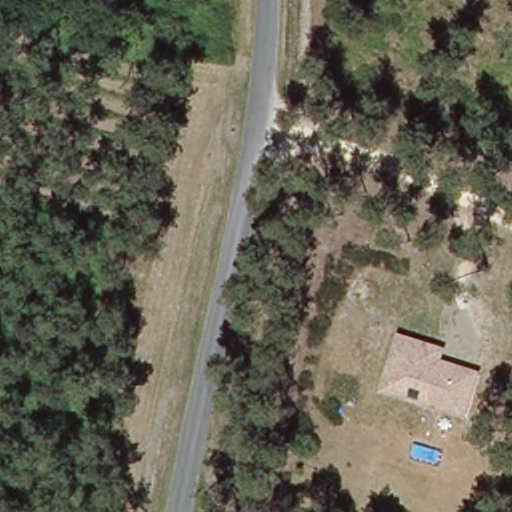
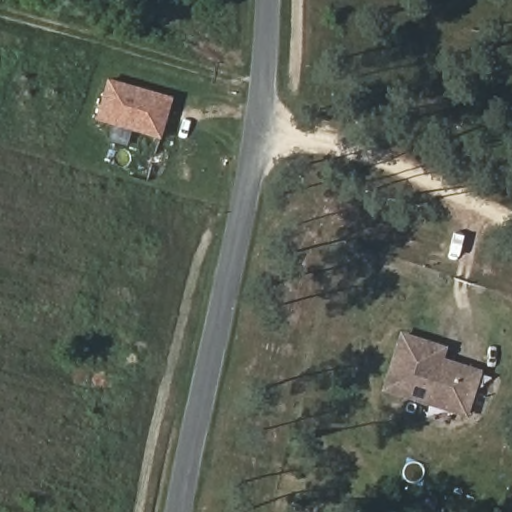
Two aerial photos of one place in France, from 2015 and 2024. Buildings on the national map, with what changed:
new [(173,97),(160,140),(94,121),(106,79),(173,97)]
unchanged [(446,347),(442,358),(482,367),(469,420),(381,392),(400,332),(446,347)]

